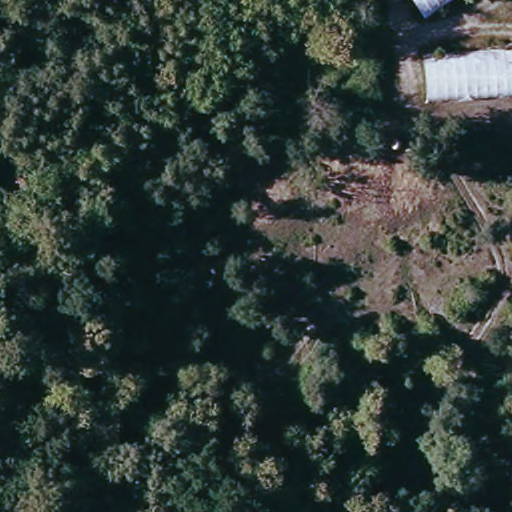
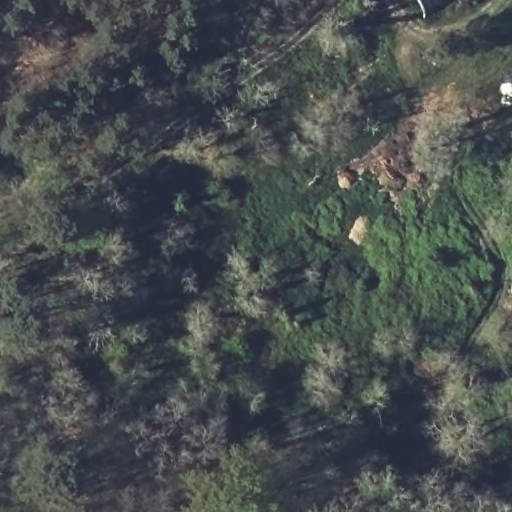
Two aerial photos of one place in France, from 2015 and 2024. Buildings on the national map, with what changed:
unchanged [(418,0),(460,0),(430,19),(418,0)]
demolished [(426,60),(512,53),(512,100),(431,107),(426,60)]

